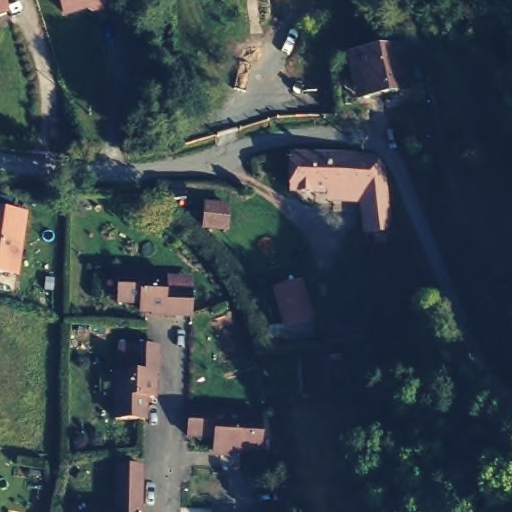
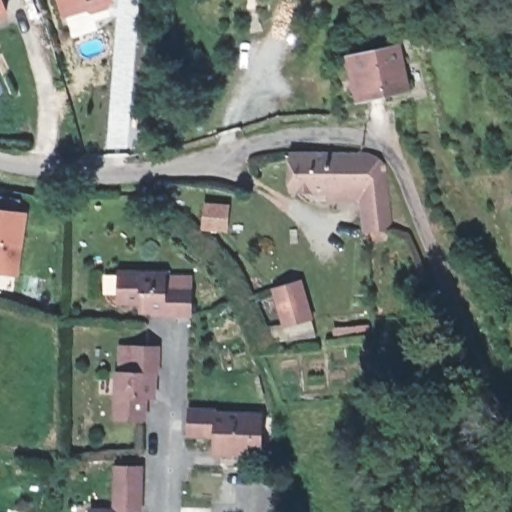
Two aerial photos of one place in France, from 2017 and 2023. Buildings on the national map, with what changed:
unchanged [(1,0),(4,9),(0,10),(0,0),(1,0)]
unchanged [(65,17),(60,0),(114,0),(115,2),(65,17)]
unchanged [(348,51),(357,50),(400,43),(407,87),(364,94),(355,96),(348,51)]
unchanged [(367,227),(364,188),(290,186),(290,150),(373,153),(379,159),(390,224),(367,227)]
unchanged [(28,212),(17,278),(0,275),(0,208),(28,212)]
unchanged [(302,277),(312,315),(279,323),(270,285),(302,277)]
unchanged [(192,321),(190,321),(166,320),(166,317),(148,316),(144,316),(144,308),(118,307),(120,285),(160,286),(160,288),(165,288),(190,288),(190,295),(193,296),(192,321)]
unchanged [(154,393),(150,393),(150,416),(122,416),(124,368),(135,368),(137,347),(164,348),(164,371),(159,372),(158,393),(154,393)]
unchanged [(210,399),(210,403),(256,404),(255,437),(234,436),(210,435),(210,424),(185,423),(185,399),(210,399)]
unchanged [(95,506),(119,506),(119,500),(119,475),(119,461),(122,461),(145,461),(145,475),(146,505),(142,504),(142,512),(95,512),(95,506)]

